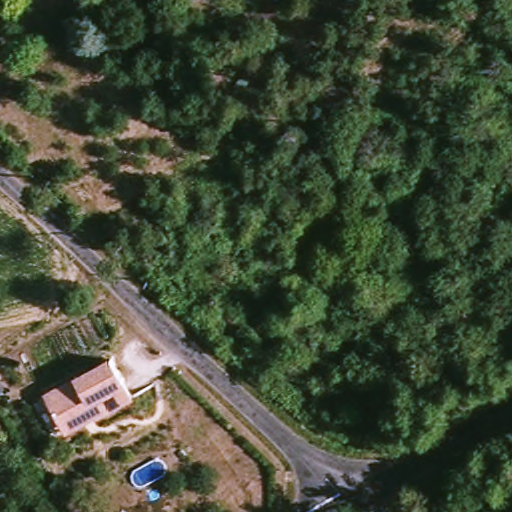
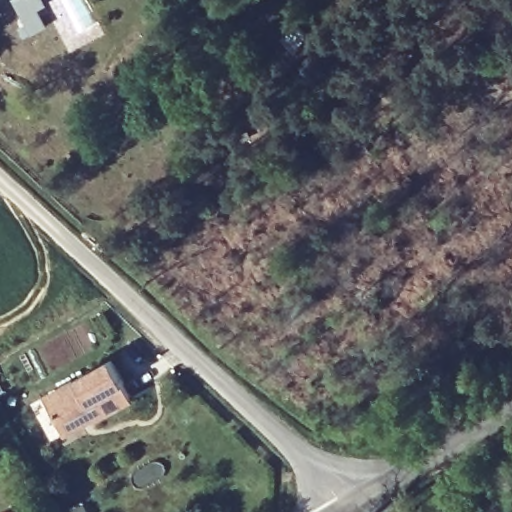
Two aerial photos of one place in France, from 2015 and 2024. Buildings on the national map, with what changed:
new [(45,25),(25,36),(20,27),(26,24),(13,0),(31,0),(45,25)]
unchanged [(70,422),(56,391),(121,357),(140,395),(105,414),(75,431),(70,422)]

